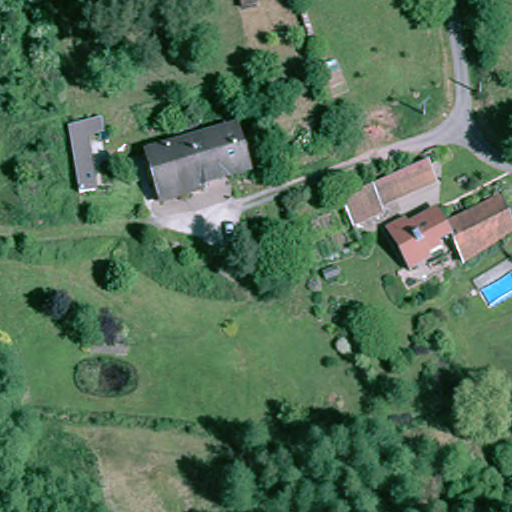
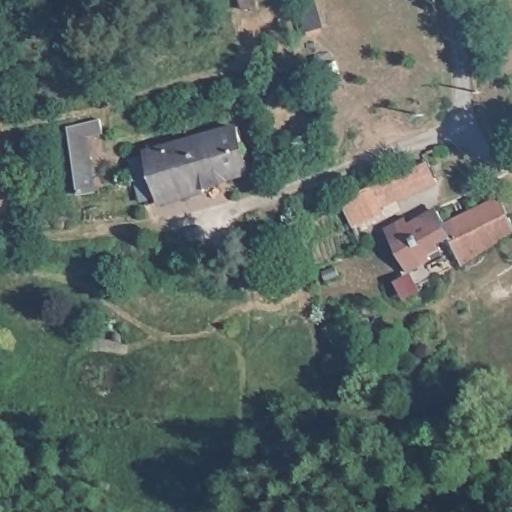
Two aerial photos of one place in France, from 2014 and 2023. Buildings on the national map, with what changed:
unchanged [(59,124),(63,123),(90,118),(90,121),(92,132),(77,135),(85,191),(76,192),(70,193),(59,124)]
unchanged [(159,194),(147,150),(240,124),(252,168),(205,181),(207,187),(183,194),(161,200),(159,194)]
unchanged [(432,175),(375,201),(377,206),(347,219),(340,199),(370,186),(368,182),(420,159),(423,157),(425,160),(432,175)]
unchanged [(443,244),(447,249),(412,269),(386,221),(407,209),(412,217),(438,203),(447,218),(505,193),(512,208),(512,226),(500,234),(472,262),(468,256),(457,237),(443,244)]

